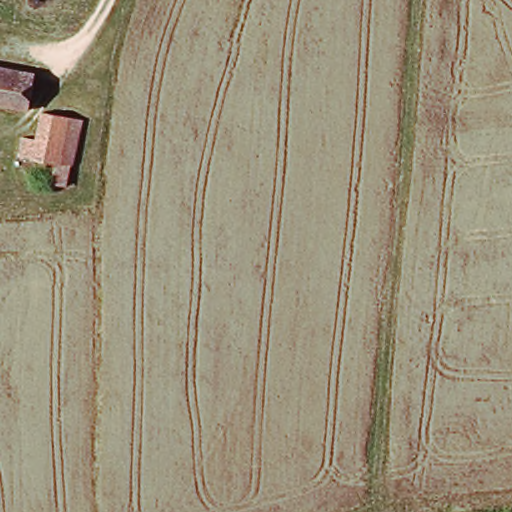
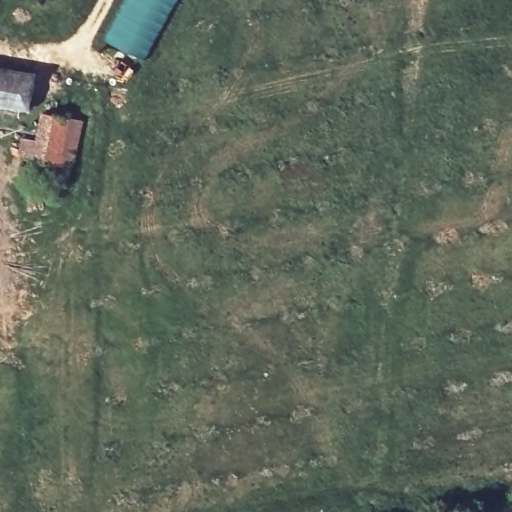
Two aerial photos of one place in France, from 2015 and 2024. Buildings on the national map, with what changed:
new [(175,0),(142,60),(100,38),(121,0),(175,0)]
unchanged [(26,113),(0,109),(0,74),(32,80),(26,113)]
unchanged [(15,169),(23,141),(35,144),(43,116),(79,126),(60,193),(44,189),(50,169),(26,164),(23,170),(15,169)]

